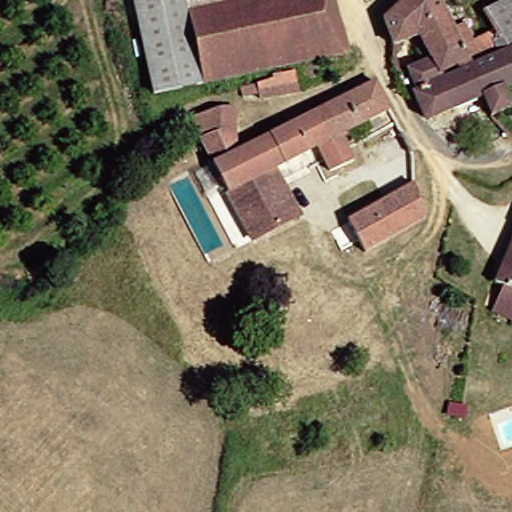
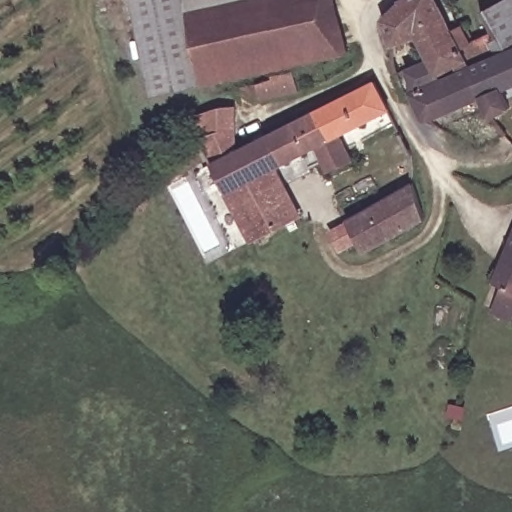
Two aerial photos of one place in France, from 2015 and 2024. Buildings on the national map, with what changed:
unchanged [(161,96),(156,80),(149,59),(151,60),(136,0),(187,0),(190,13),(209,84),(184,91),(161,96)]
unchanged [(190,13),(232,0),(284,0),(301,59),(209,84),(190,13)]
unchanged [(346,49),(301,59),(284,0),(333,0),(339,13),(346,49)]
unchanged [(392,95),(386,78),(415,60),(402,37),(385,47),(375,30),(391,8),(401,0),(423,0),(433,11),(427,14),(439,30),(453,52),(426,66),(429,71),(401,89),(392,95)]
unchanged [(479,47),(487,40),(479,27),(470,15),(494,0),(510,0),(512,2),(512,45),(485,56),(479,47)]
unchanged [(453,52),(439,30),(448,23),(460,40),(468,36),(479,27),(487,40),(479,47),(485,56),(462,65),(453,52)]
unchanged [(462,65),(485,56),(512,45),(512,107),(496,116),(479,91),(462,65)]
unchanged [(414,121),(401,89),(462,65),(479,91),(424,123),(414,121)]
unchanged [(265,82),(264,76),(286,70),(291,87),(236,104),(231,92),(265,82)]
unchanged [(288,223),(248,246),(189,146),(181,130),(211,116),(221,134),(231,156),(361,87),(374,112),(324,141),(339,166),(316,180),(301,153),(267,173),(294,219),(288,223)]
unchanged [(361,259),(341,231),(407,187),(422,206),(426,216),(397,238),(361,259)]
unchanged [(479,308),(489,292),(479,285),(512,225),(512,303),(503,322),(479,308)]

